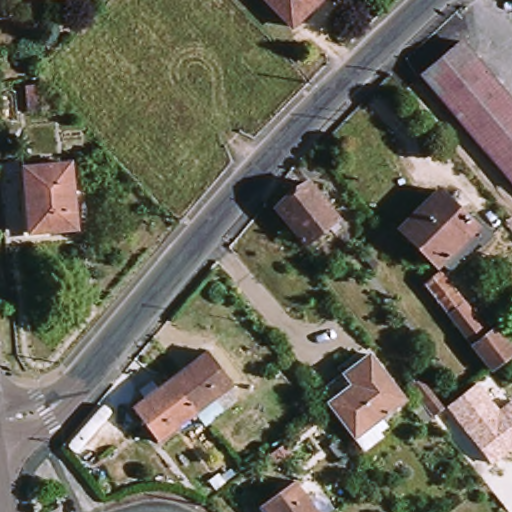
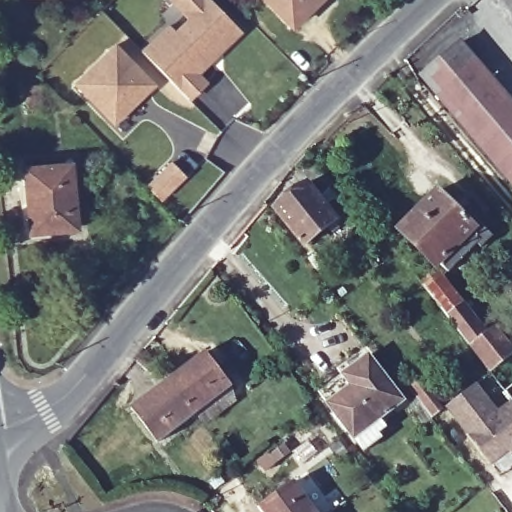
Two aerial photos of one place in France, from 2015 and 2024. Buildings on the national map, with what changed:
unchanged [(77,1),(33,0),(77,0),(77,1)]
new [(170,26),(177,32),(192,17),(175,0),(211,0),(240,30),(197,71),(206,81),(190,97),(144,50),(170,26)]
unchanged [(294,27),(267,0),(322,0),(294,27)]
new [(117,45),(155,83),(116,121),(78,83),(117,45)]
unchanged [(424,81),(465,46),(512,102),(512,183),(511,181),(424,81)]
unchanged [(41,112),(31,113),(30,94),(41,94),(41,112)]
new [(175,161),(187,174),(163,198),(151,185),(175,161)]
unchanged [(29,172),(72,167),(79,227),(37,232),(29,172)]
unchanged [(338,220),(305,246),(275,208),(308,182),(338,220)]
unchanged [(440,271),(405,234),(445,195),(475,226),(480,222),(497,240),(485,252),(482,248),(453,276),(445,267),(440,271)]
unchanged [(310,260),(318,254),(327,267),(320,272),(310,260)]
unchanged [(507,364),(495,374),(428,289),(445,276),(495,337),(503,331),(512,344),(512,367),(510,368),(507,364)]
unchanged [(208,352),(234,386),(197,414),(171,380),(208,352)]
unchanged [(376,449),(369,448),(362,440),(361,441),(325,396),(374,357),(410,403),(379,427),(388,439),(376,449)]
unchanged [(160,442),(134,408),(171,380),(197,414),(160,442)]
unchanged [(437,419),(413,387),(418,383),(422,388),(427,386),(447,411),(437,419)]
unchanged [(446,407),(478,383),(499,411),(512,400),(512,454),(494,467),(446,407)]
unchanged [(300,482),(322,512),(269,512),(265,507),(300,482)]

